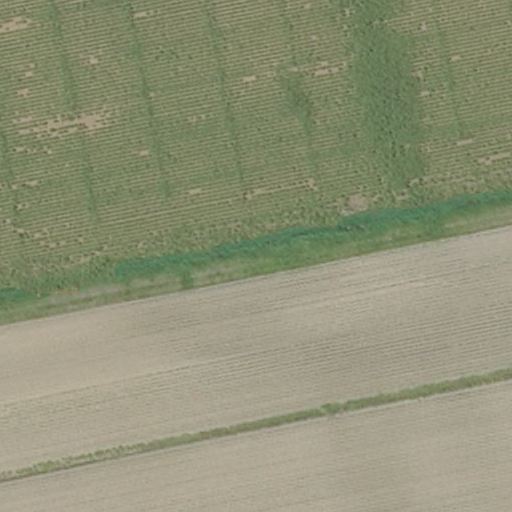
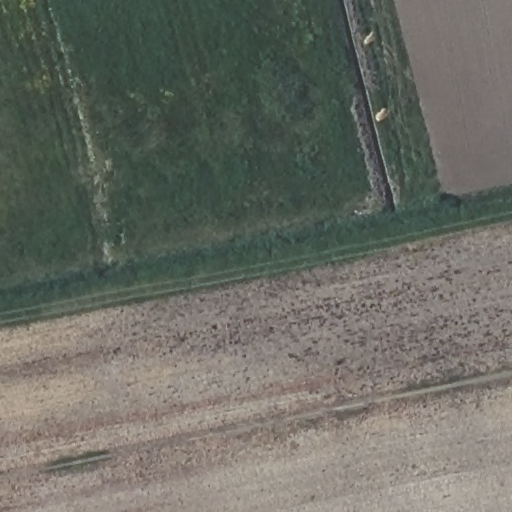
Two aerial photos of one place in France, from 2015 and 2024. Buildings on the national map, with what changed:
[]

